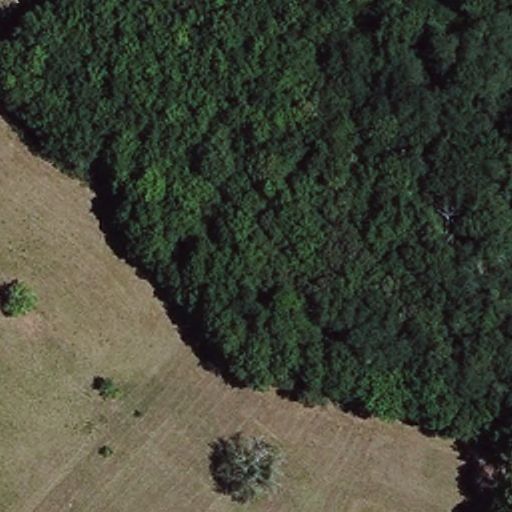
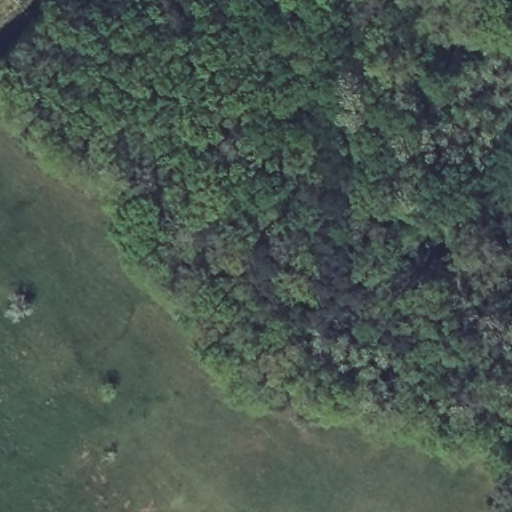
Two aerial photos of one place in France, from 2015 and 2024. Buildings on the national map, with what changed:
[]

